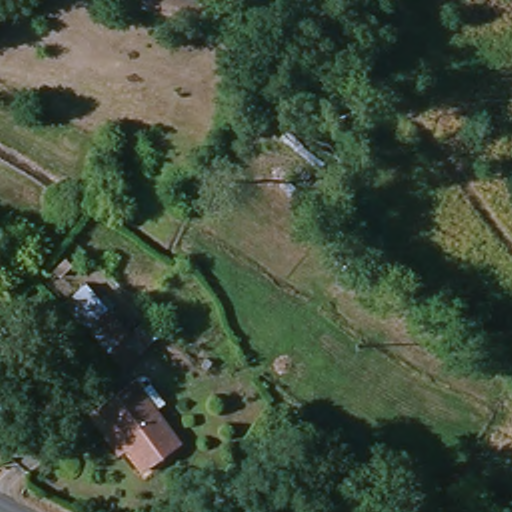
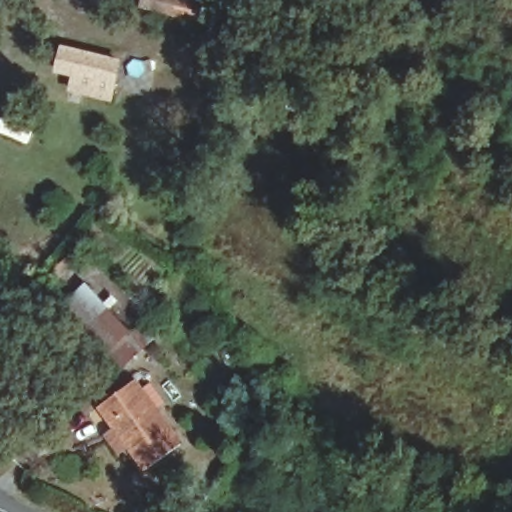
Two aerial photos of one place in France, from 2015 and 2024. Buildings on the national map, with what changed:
demolished [(197,0),(193,17),(170,13),(174,0),(197,0)]
new [(124,60),(113,102),(69,91),(73,76),(55,72),(62,45),(124,60)]
unchanged [(123,372),(65,306),(85,282),(131,332),(146,320),(162,338),(123,372)]
unchanged [(184,445),(150,467),(110,413),(103,405),(136,382),(151,403),(184,445)]

